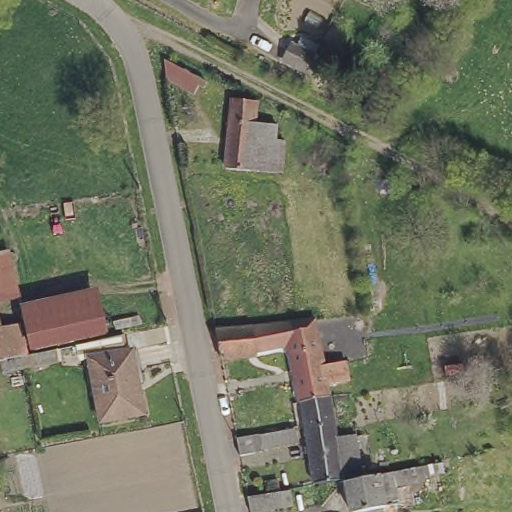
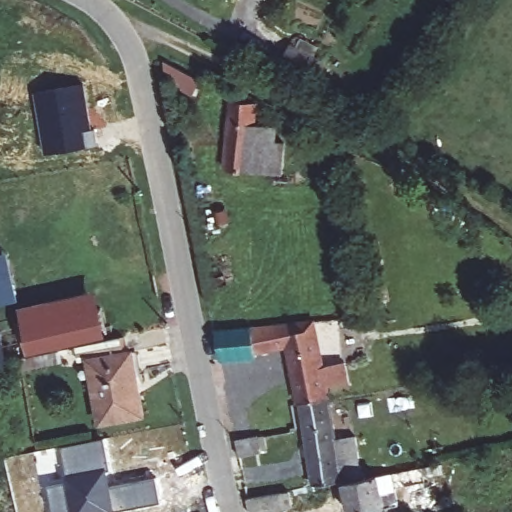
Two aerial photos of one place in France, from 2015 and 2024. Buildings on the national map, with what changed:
unchanged [(305,36),(339,51),(321,86),(290,62),(305,36)]
unchanged [(212,92),(209,98),(202,95),(197,105),(168,90),(163,67),(212,92)]
new [(35,92),(84,83),(93,129),(96,129),(100,145),(45,153),(35,92)]
unchanged [(285,153),(280,186),(247,180),(222,177),(227,133),(229,107),(252,108),(250,129),(273,133),(271,151),(285,153)]
unchanged [(26,307),(0,312),(0,265),(17,262),(26,307)]
unchanged [(84,306),(94,304),(104,345),(28,362),(19,317),(84,306)]
unchanged [(344,397),(327,399),(330,410),(300,414),(289,355),(257,360),(257,366),(222,371),(216,339),(315,328),(324,378),(340,376),(344,397)]
unchanged [(24,367),(18,368),(17,368),(0,372),(0,339),(17,336),(24,367)]
unchanged [(135,383),(142,426),(97,434),(85,370),(86,369),(84,355),(123,347),(126,363),(130,384),(135,383)]
unchanged [(420,496),(422,504),(407,507),(408,512),(351,512),(347,490),(344,490),(316,495),(300,414),(330,410),(337,454),(357,451),(364,487),(424,477),(427,494),(420,496)]
unchanged [(288,428),(290,443),(257,448),(257,451),(237,455),(233,437),(288,428)]
new [(66,482),(60,447),(105,438),(111,469),(108,470),(111,485),(157,476),(162,502),(116,510),(117,512),(54,512),(49,485),(66,482)]
unchanged [(283,512),(246,512),(245,505),(280,500),(283,512)]

